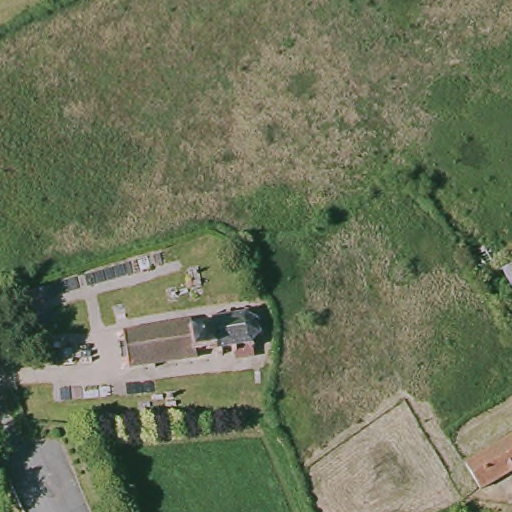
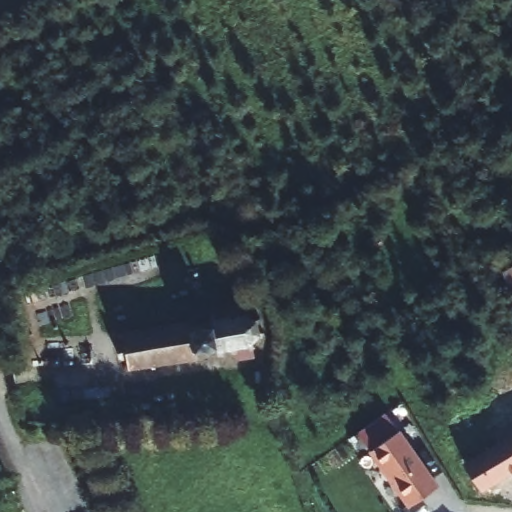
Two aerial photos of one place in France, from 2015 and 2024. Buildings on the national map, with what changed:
unchanged [(512,263),(512,290),(502,270),(512,263)]
unchanged [(259,331),(268,333),(268,339),(256,338),(254,341),(255,354),(236,357),(235,344),(226,345),(227,355),(220,356),(220,346),(200,349),(200,355),(134,363),(133,352),(128,353),(125,340),(125,337),(131,335),(130,328),(195,318),(195,323),(216,320),(213,311),(221,308),(223,318),(233,316),(230,305),(237,305),(239,314),(243,315),(248,305),(254,309),(251,315),(257,322),(264,317),(268,323),(259,326),(259,331)]
unchanged [(460,459),(512,427),(512,460),(474,483),(460,459)]
new [(407,507),(371,454),(402,432),(439,485),(407,507)]

